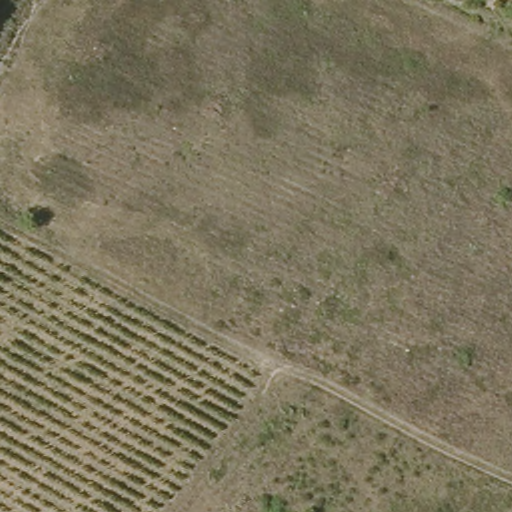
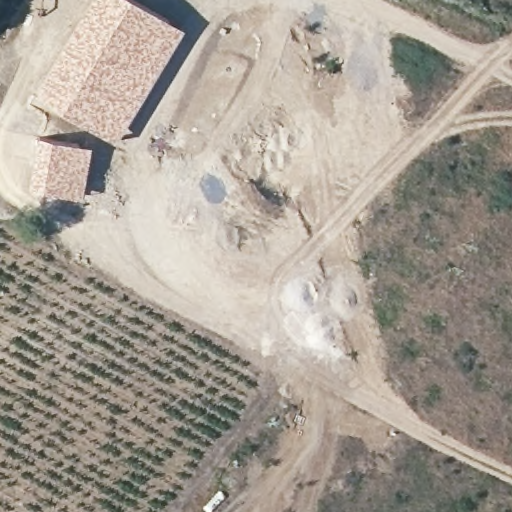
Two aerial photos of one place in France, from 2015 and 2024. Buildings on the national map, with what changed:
new [(138,0),(183,26),(139,101),(113,141),(33,96),(90,0),(138,0)]
new [(36,135),(92,145),(81,199),(28,190),(36,135)]

